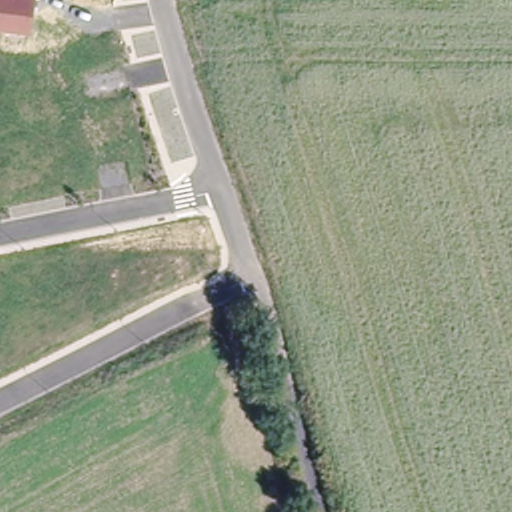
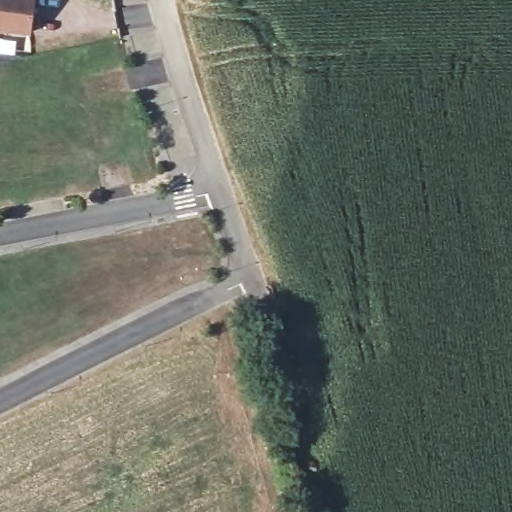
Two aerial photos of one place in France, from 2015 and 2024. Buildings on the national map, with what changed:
unchanged [(30,35),(0,29),(0,0),(36,0),(30,35)]

